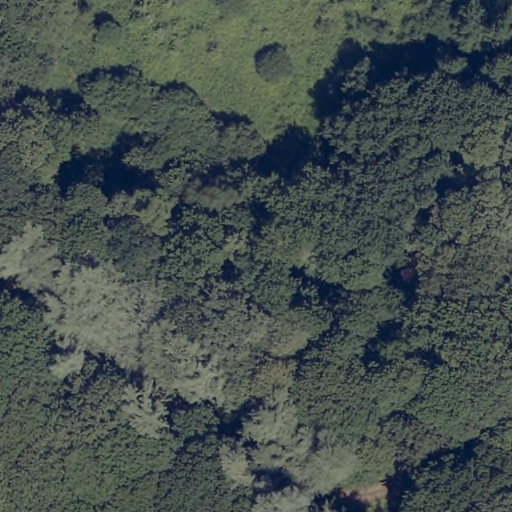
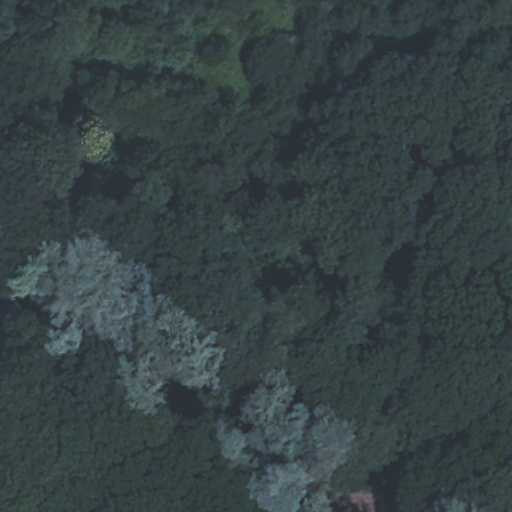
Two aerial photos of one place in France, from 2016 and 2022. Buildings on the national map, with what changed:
[]

